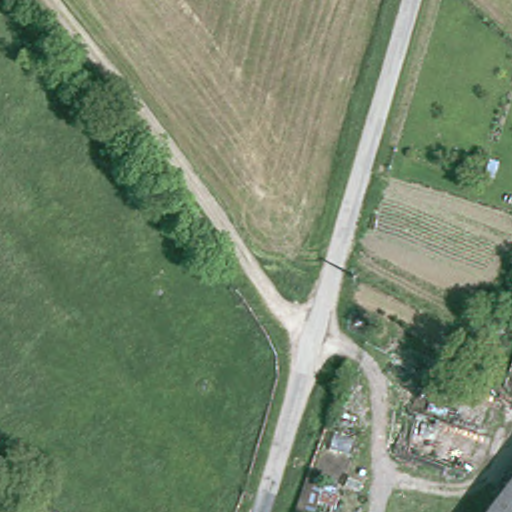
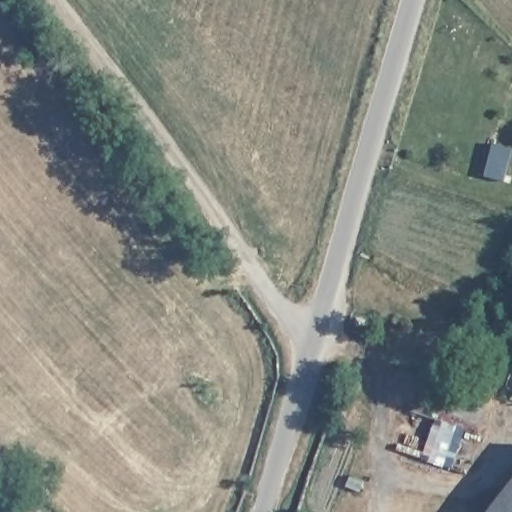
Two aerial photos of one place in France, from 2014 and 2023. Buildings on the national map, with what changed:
new [(512,150),(512,157),(510,163),(504,182),(485,176),(491,157),(495,144),(512,150)]
unchanged [(512,512),(490,512),(512,482),(512,512)]

